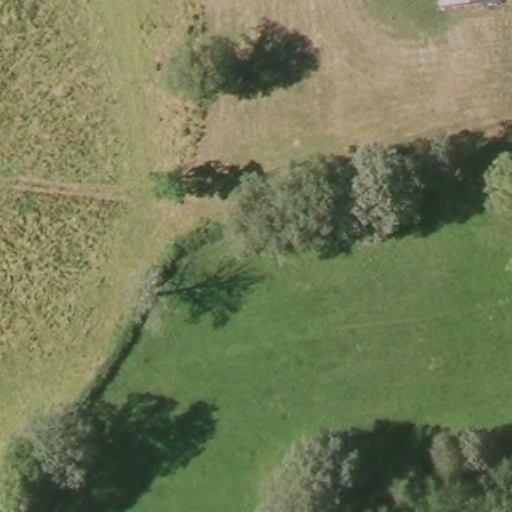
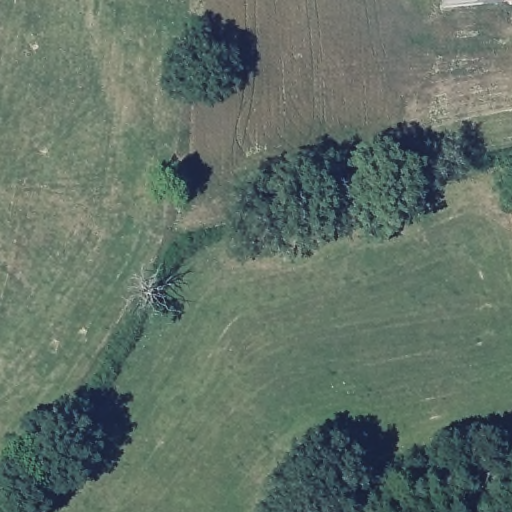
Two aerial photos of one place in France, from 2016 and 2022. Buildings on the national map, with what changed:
unchanged [(442,1),(442,0),(451,0),(442,1)]

